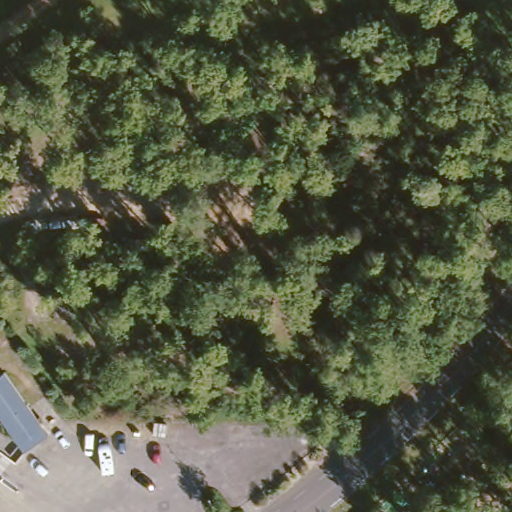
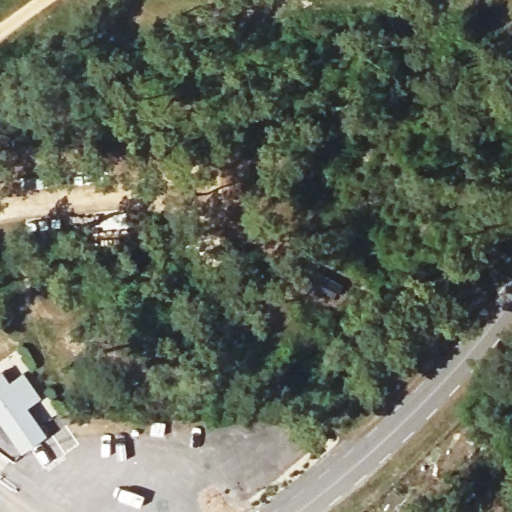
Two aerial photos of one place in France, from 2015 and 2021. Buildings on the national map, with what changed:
unchanged [(322,273),(350,287),(343,302),(315,288),(322,273)]
unchanged [(0,421),(0,374),(2,372),(46,436),(22,452),(0,421)]
unchanged [(155,423),(171,424),(170,438),(155,437),(155,423)]

